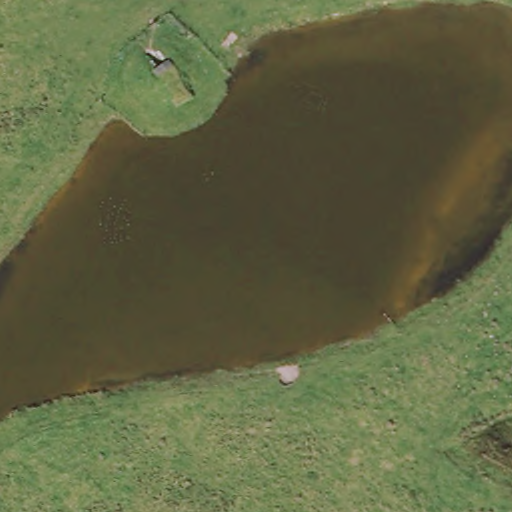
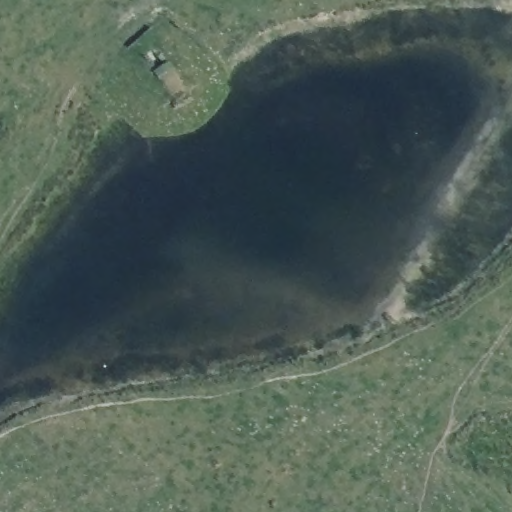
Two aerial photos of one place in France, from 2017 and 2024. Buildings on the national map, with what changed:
unchanged [(193,102),(174,111),(160,81),(177,71),(193,102)]

